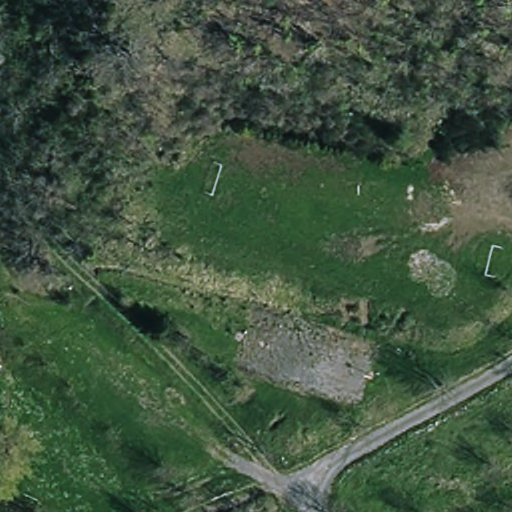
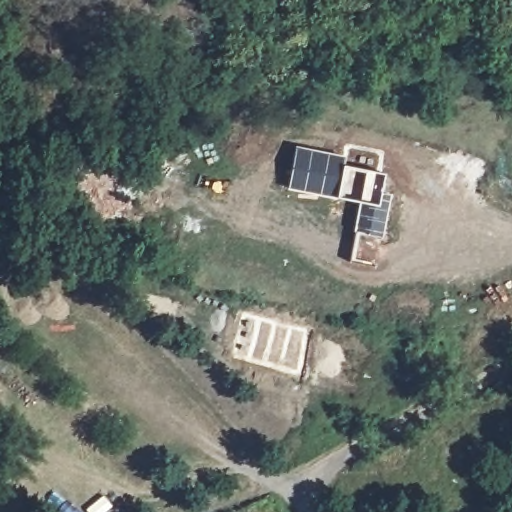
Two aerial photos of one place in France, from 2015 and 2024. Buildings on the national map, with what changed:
new [(346,156),(345,165),(385,174),(382,193),(392,195),(383,237),(354,231),(360,203),(337,198),(288,189),(297,146),(346,156)]

